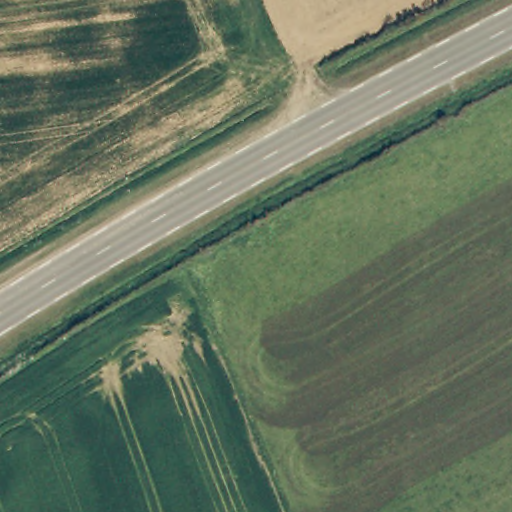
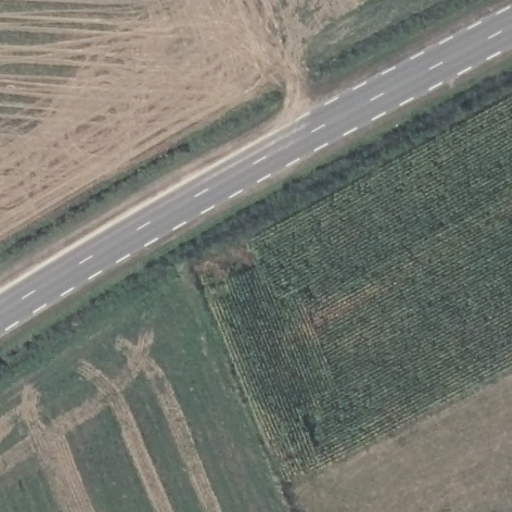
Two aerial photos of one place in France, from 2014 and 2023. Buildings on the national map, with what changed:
[]

